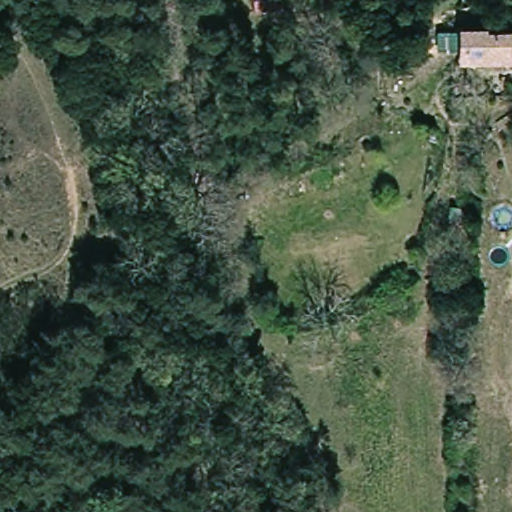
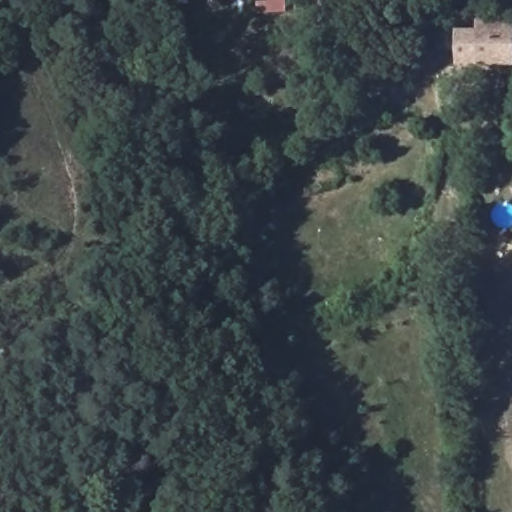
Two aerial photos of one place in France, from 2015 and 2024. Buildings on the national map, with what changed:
unchanged [(460,53),(453,52),(455,35),(480,36),(480,39),(512,40),(512,62),(459,61),(460,53)]

